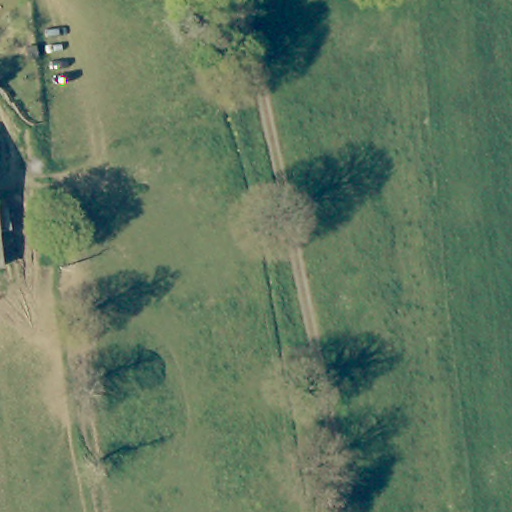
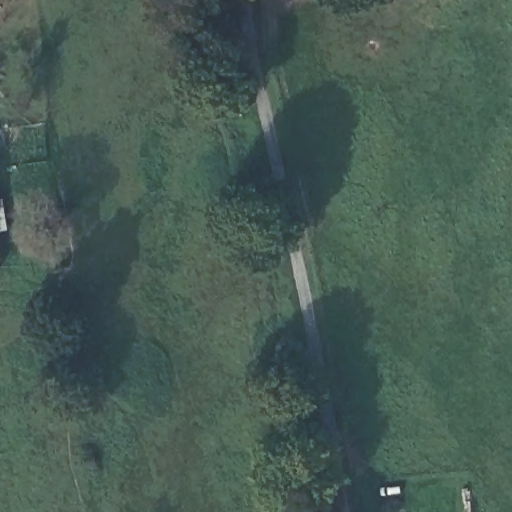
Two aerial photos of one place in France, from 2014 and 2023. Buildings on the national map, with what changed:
unchanged [(9,235),(0,237),(0,199),(3,199),(9,235)]
unchanged [(0,264),(0,252),(2,263),(0,264)]

